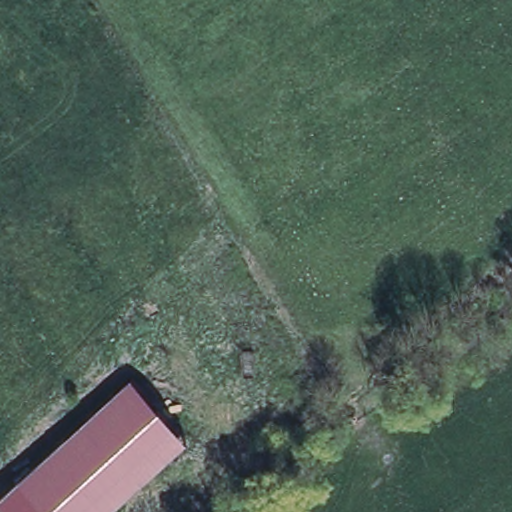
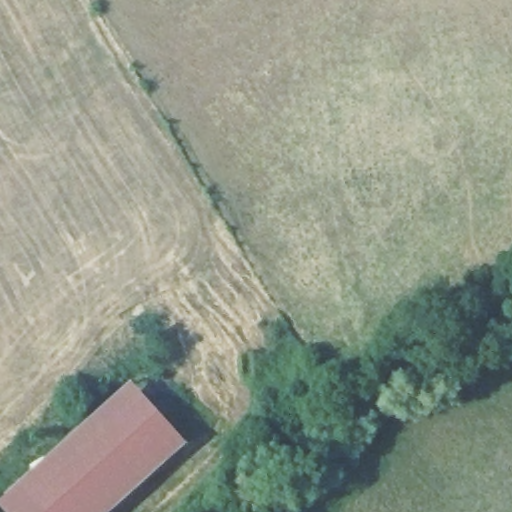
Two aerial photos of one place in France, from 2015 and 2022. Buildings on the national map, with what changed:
unchanged [(131,382),(183,443),(103,512),(8,512),(0,504),(0,493),(131,382)]

